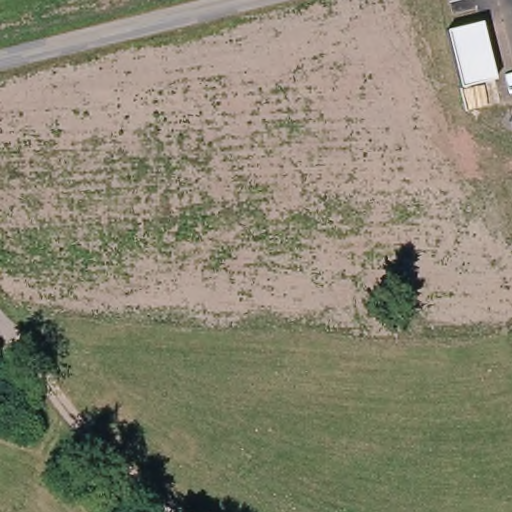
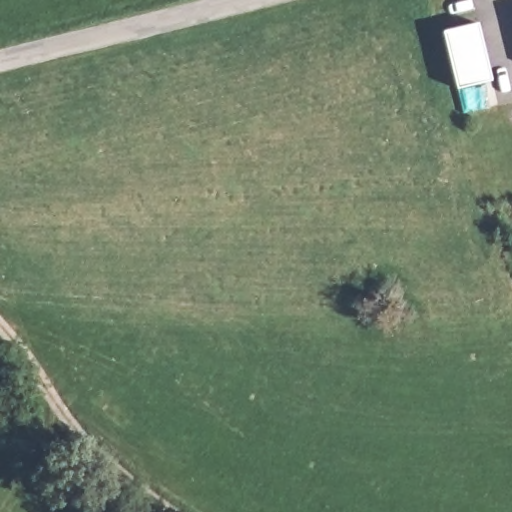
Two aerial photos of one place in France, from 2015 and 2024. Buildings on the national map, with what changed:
unchanged [(458,88),(445,31),(480,22),(494,79),(458,88)]

